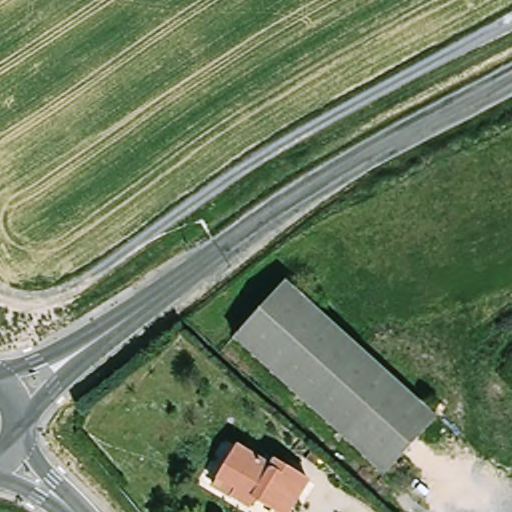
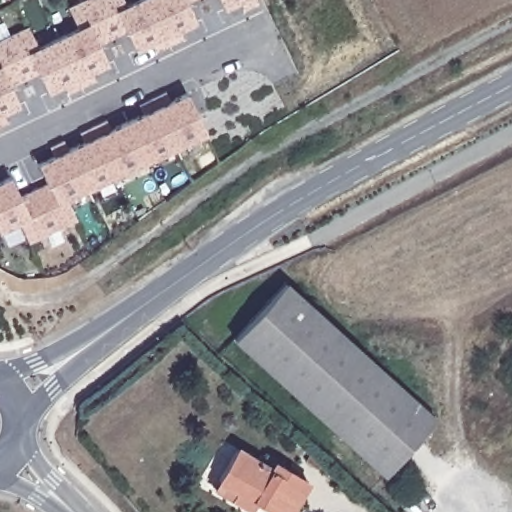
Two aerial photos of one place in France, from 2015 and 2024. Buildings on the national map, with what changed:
new [(37,47),(78,27),(67,7),(82,0),(124,0),(126,4),(134,0),(186,0),(185,0),(195,22),(180,30),(183,39),(155,52),(151,44),(135,51),(124,29),(97,43),(108,64),(92,71),(95,81),(67,94),(63,85),(47,94),(36,71),(9,85),(19,105),(4,113),(7,122),(0,126),(0,39),(27,26),(37,47)]
new [(244,10),(240,1),(224,10),(219,0),(256,0),(257,4),(244,10)]
new [(17,194),(45,181),(37,164),(54,156),(49,147),(63,140),(68,150),(84,141),(80,132),(106,120),(111,129),(143,112),(139,105),(165,91),(169,100),(185,92),(206,134),(67,200),(77,220),(28,244),(19,222),(0,232),(0,180),(9,176),(17,194)]
unchanged [(289,285),(438,420),(388,475),(239,340),(289,285)]
unchanged [(277,463),(310,483),(293,512),(277,512),(257,500),(252,508),(217,487),(240,448),(274,469),(277,463)]
unchanged [(316,470),(305,461),(311,453),(322,462),(316,470)]

